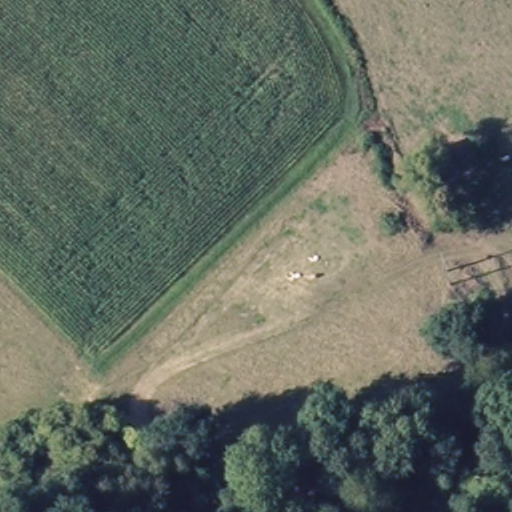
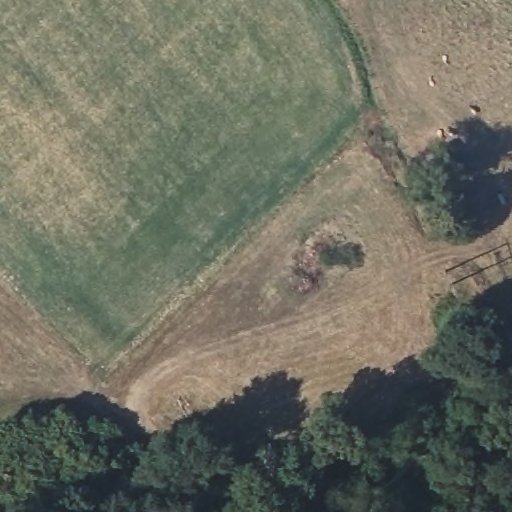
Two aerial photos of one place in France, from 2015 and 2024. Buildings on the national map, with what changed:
unchanged [(461,171),(421,195),(404,167),(443,143),(461,171)]

